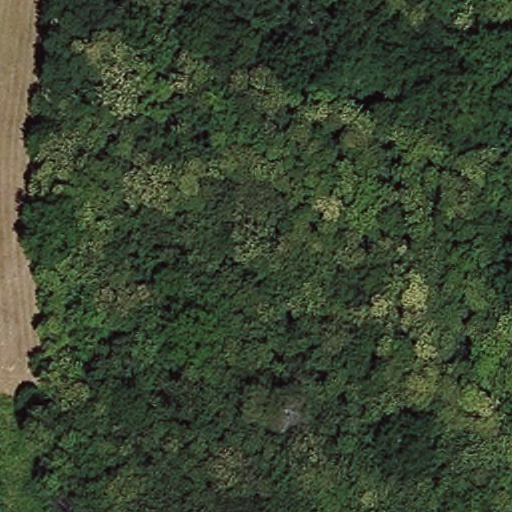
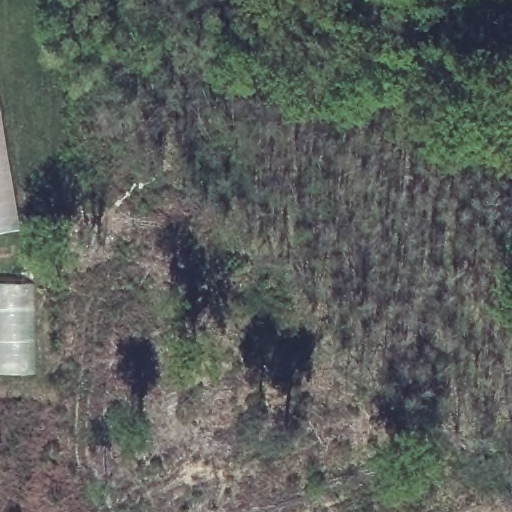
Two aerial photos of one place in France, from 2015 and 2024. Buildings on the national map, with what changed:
new [(20,230),(0,234),(0,93),(20,230)]
new [(36,282),(35,374),(0,374),(0,283),(36,282)]

